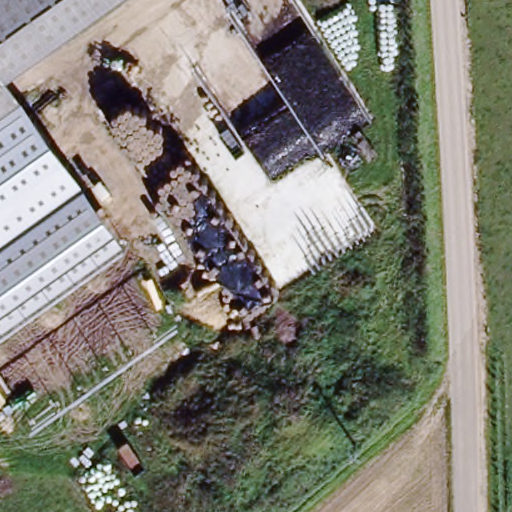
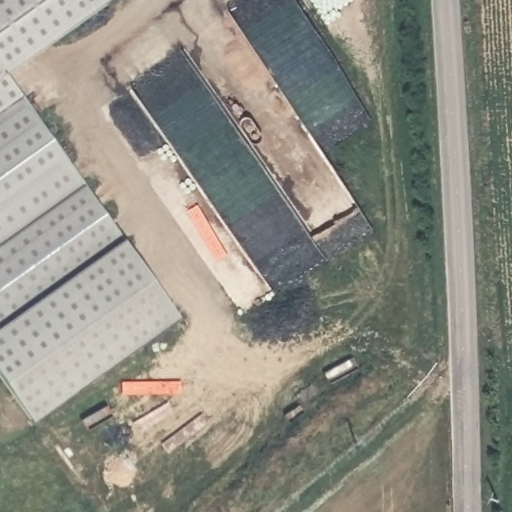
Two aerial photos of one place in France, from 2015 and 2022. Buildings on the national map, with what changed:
unchanged [(6,75),(26,102),(0,120),(0,0),(114,0),(6,75)]
unchanged [(123,241),(0,330),(0,120),(26,102),(123,241)]
new [(180,319),(33,423),(0,376),(0,330),(123,241),(180,319)]

